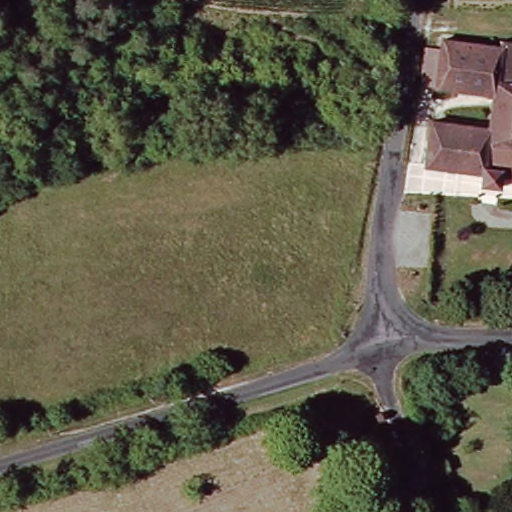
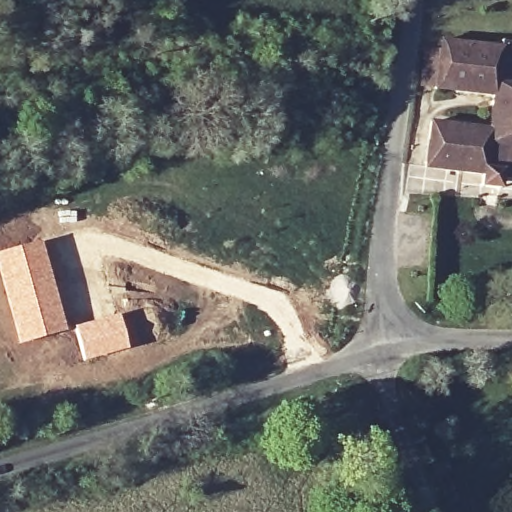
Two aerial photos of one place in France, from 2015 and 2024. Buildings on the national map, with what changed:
unchanged [(424,84),(429,50),(443,51),(445,40),(474,42),(469,91),(438,88),(439,85),(424,84)]
unchanged [(502,84),(505,46),(506,40),(512,41),(512,84),(502,84)]
unchanged [(474,42),(505,46),(502,84),(512,84),(512,115),(495,113),(498,94),(469,91),(474,42)]
unchanged [(484,174),(494,129),(495,113),(512,115),(512,178),(504,177),(503,189),(483,187),(484,174)]
unchanged [(494,129),(484,174),(427,167),(434,121),(494,129)]
new [(66,330),(19,344),(0,274),(0,251),(41,240),(66,330)]
new [(119,313),(129,347),(84,360),(74,326),(119,313)]
unchanged [(444,472),(457,497),(447,502),(432,466),(447,461),(449,469),(444,472)]

